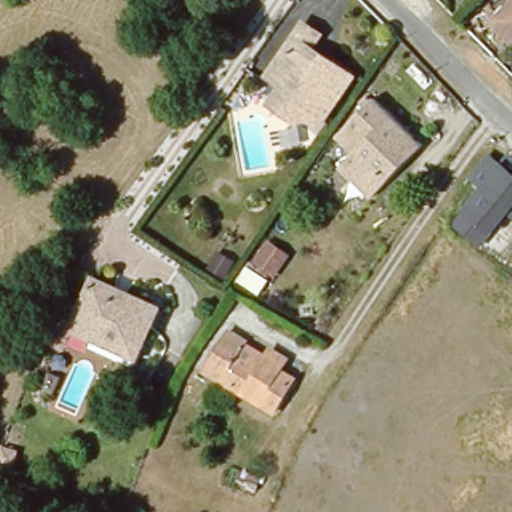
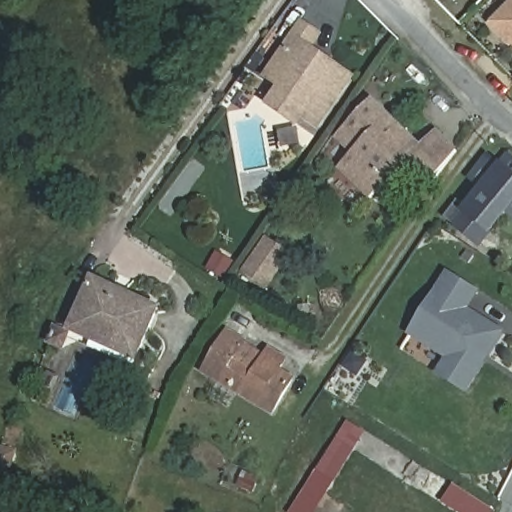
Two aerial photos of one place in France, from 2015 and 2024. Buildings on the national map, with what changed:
unchanged [(493,20),(512,1),(512,39),(493,20)]
unchanged [(324,125),(309,115),(304,122),(277,104),(289,85),(274,75),(309,25),(324,36),(315,50),(357,78),(324,125)]
unchanged [(340,166),(356,151),(338,134),(373,99),(421,146),(379,189),(371,197),(340,166)]
unchanged [(479,251),(454,231),(483,195),(470,184),(490,160),(503,170),(512,160),(512,211),(479,251)]
unchanged [(284,251),(271,272),(256,262),(269,241),(284,251)]
unchanged [(225,277),(209,268),(218,253),(234,261),(225,277)]
new [(472,308),(508,330),(467,392),(436,373),(444,357),(436,352),(428,365),(399,346),(448,271),(483,291),(472,308)]
unchanged [(73,330),(95,280),(159,308),(139,350),(133,366),(90,347),(94,340),(73,330)]
unchanged [(272,356),(285,365),(279,375),(294,383),(273,417),(207,376),(230,337),(248,347),(244,353),(265,366),(272,356)]
new [(316,512),(288,512),(348,421),(368,434),(316,512)]
unchanged [(8,477),(0,475),(0,458),(3,451),(4,448),(16,453),(8,477)]
new [(494,512),(461,512),(441,498),(454,483),(495,511),(494,512)]

